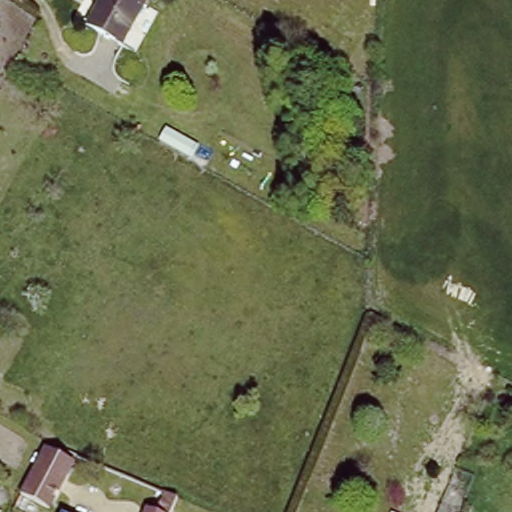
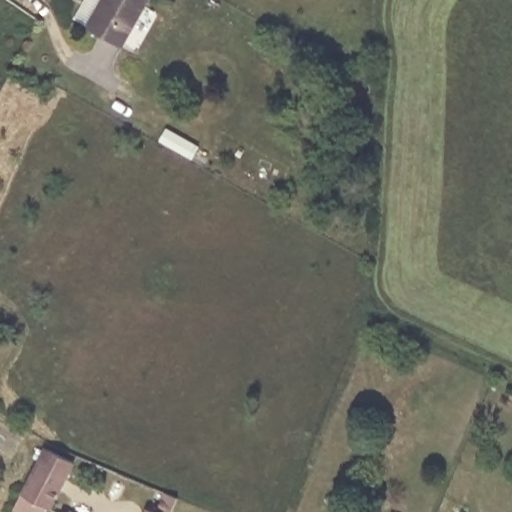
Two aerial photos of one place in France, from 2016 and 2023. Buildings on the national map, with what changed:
unchanged [(147,0),(120,47),(89,29),(106,0),(147,0)]
unchanged [(45,447),(77,464),(52,512),(51,512),(21,497),(45,447)]
unchanged [(159,503),(172,509),(171,512),(155,512),(159,503)]

